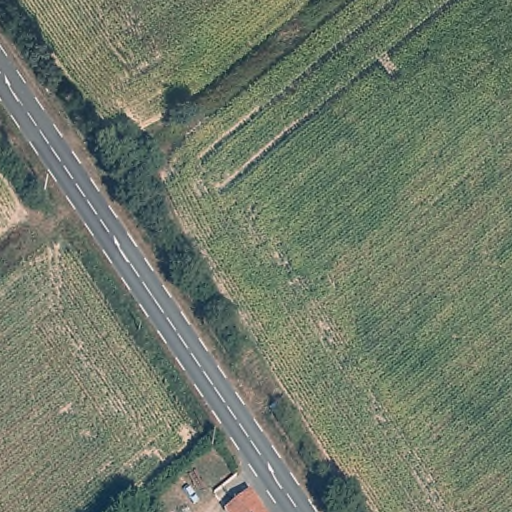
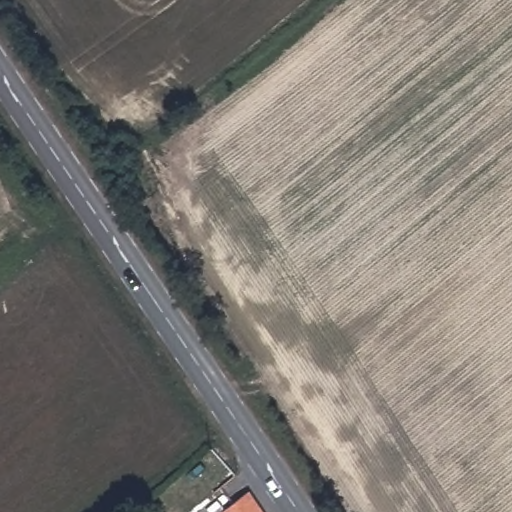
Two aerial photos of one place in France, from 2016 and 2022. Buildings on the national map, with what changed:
unchanged [(266,512),(229,512),(255,495),(257,499),(266,512)]

